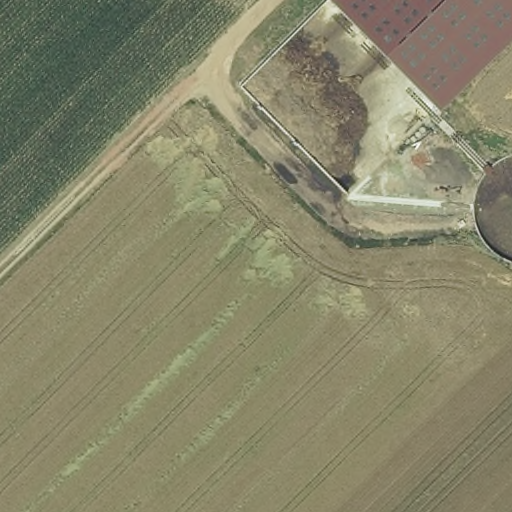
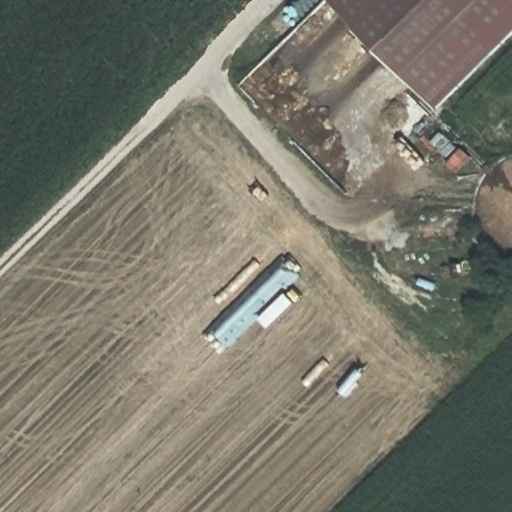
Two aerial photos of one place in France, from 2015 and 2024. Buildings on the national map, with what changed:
unchanged [(439,108),(330,0),(512,0),(512,37),(439,108)]

